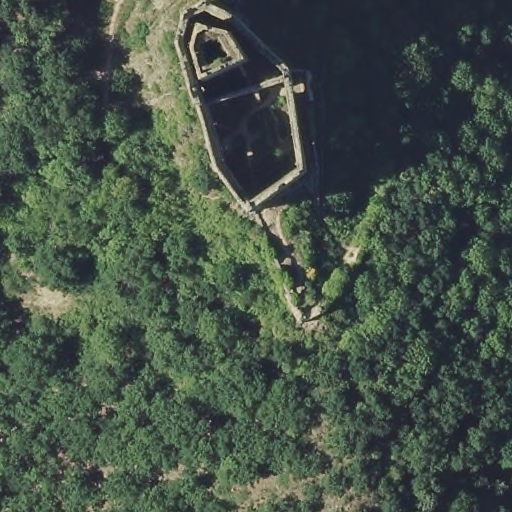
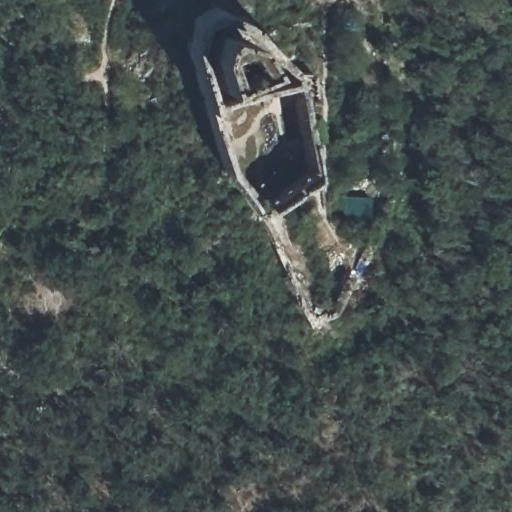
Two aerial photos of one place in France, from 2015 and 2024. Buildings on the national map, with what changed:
unchanged [(238,40),(255,65),(209,84),(201,52),(207,31),(238,40)]

